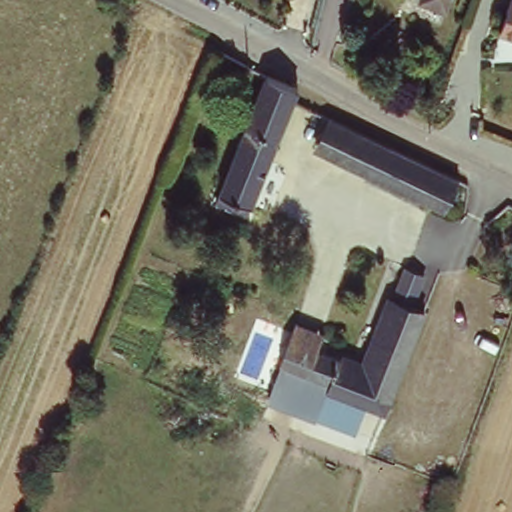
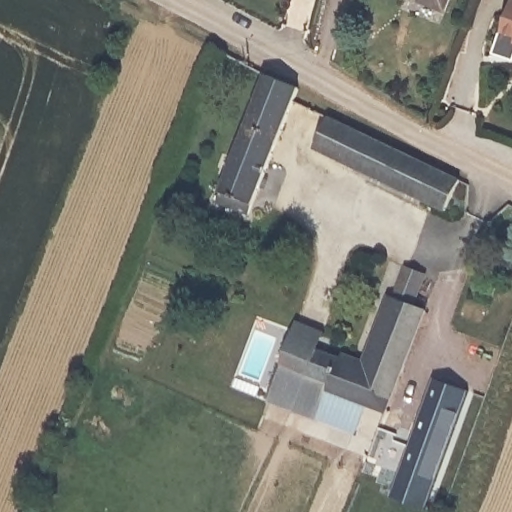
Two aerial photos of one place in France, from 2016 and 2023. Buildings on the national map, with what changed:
unchanged [(449,11),(422,0),(453,0),(449,11)]
unchanged [(500,27),(509,0),(512,0),(512,31),(500,27)]
unchanged [(255,204),(222,191),(267,70),(301,86),(255,204)]
unchanged [(314,146),(327,115),(455,178),(443,206),(314,146)]
unchanged [(384,417),(370,411),(360,438),(269,401),(284,360),(299,322),(325,332),(323,344),(369,361),(406,266),(428,275),(418,308),(429,312),(384,417)]
new [(431,512),(417,512),(389,500),(434,381),(471,395),(431,512)]

